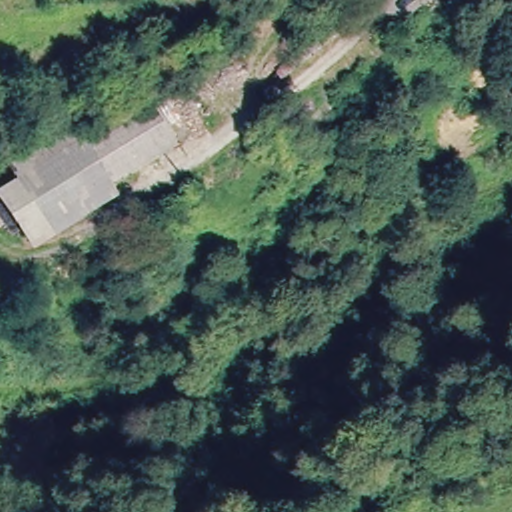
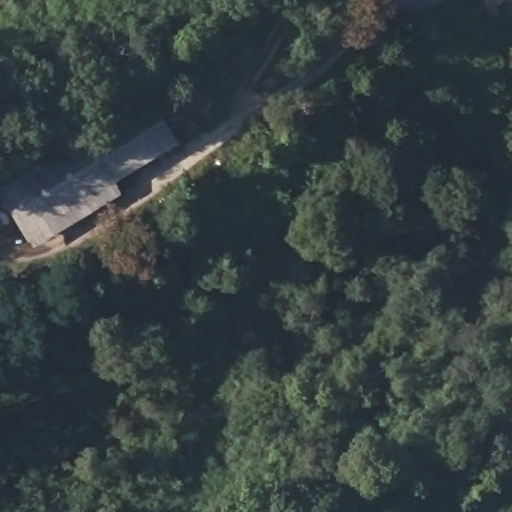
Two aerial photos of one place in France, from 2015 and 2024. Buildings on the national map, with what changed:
unchanged [(175,145),(115,180),(124,196),(29,250),(0,199),(0,191),(19,177),(8,162),(72,126),(82,142),(146,101),(175,145)]

